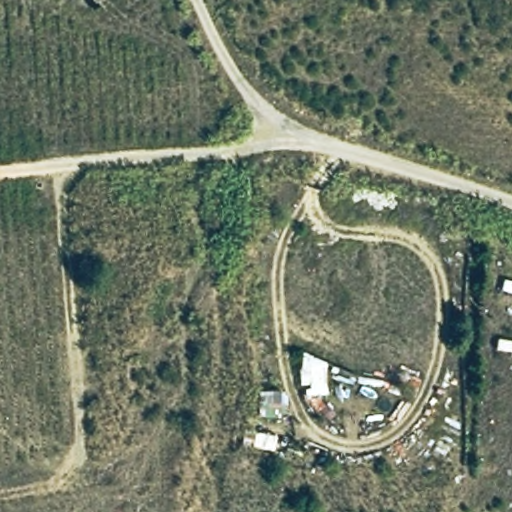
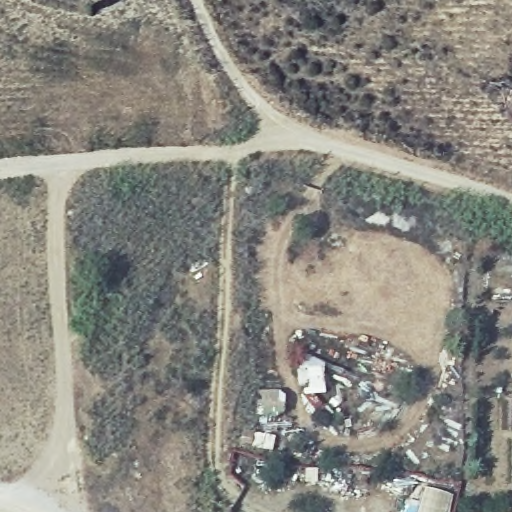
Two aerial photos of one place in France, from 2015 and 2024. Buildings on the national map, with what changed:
unchanged [(289,393),(286,412),(255,410),(258,392),(289,393)]

